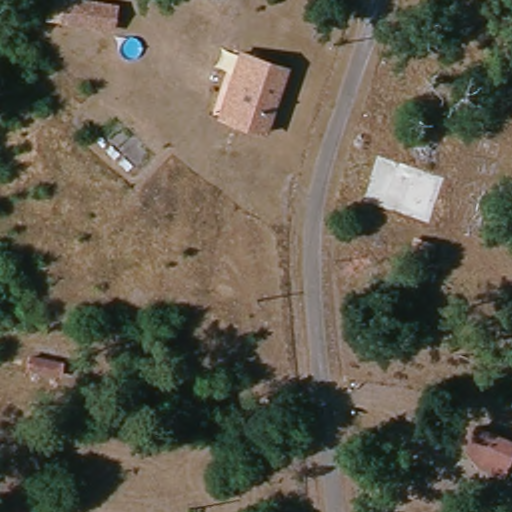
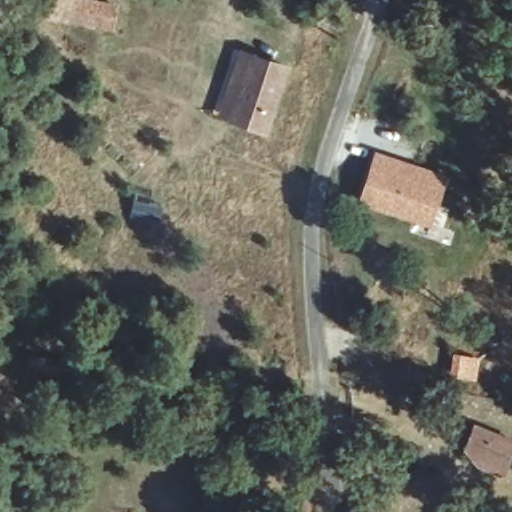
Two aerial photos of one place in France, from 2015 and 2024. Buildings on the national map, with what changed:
unchanged [(51,0),(78,0),(106,5),(104,25),(49,14),(51,0)]
unchanged [(219,119),(229,55),(278,64),(268,125),(219,119)]
demolished [(336,188),(350,145),(405,165),(391,209),(336,188)]
new [(449,176),(430,227),(356,201),(376,150),(449,176)]
unchanged [(455,452),(472,422),(510,445),(495,476),(455,452)]

